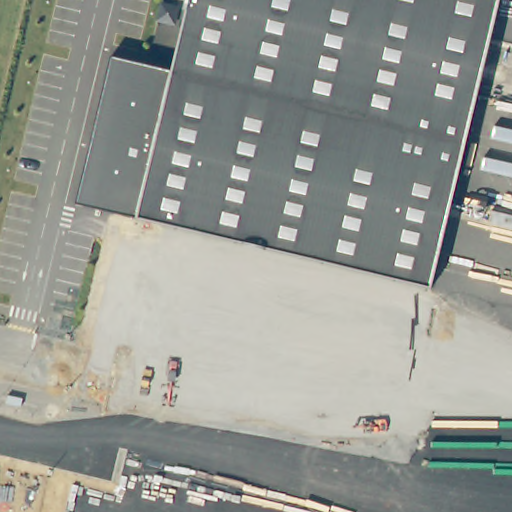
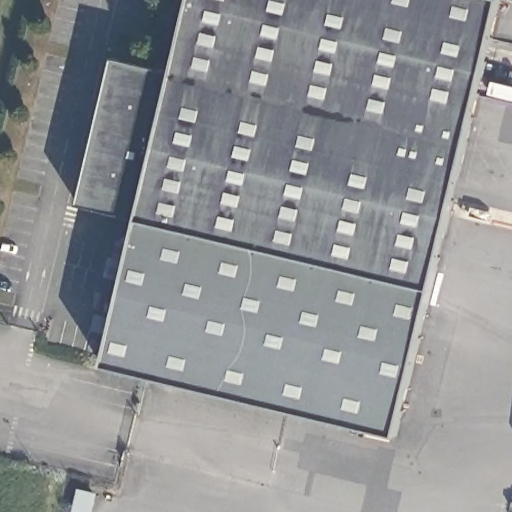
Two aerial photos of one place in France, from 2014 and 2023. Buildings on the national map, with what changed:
unchanged [(429,289),(138,220),(76,205),(111,59),(173,73),(190,0),(499,0),(429,289)]
new [(429,289),(395,435),(103,365),(138,220),(429,289)]

